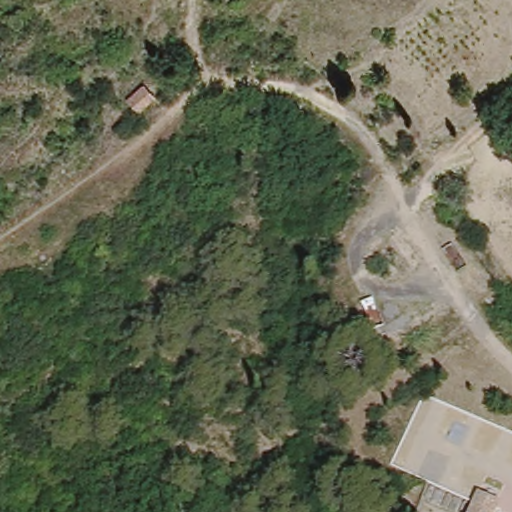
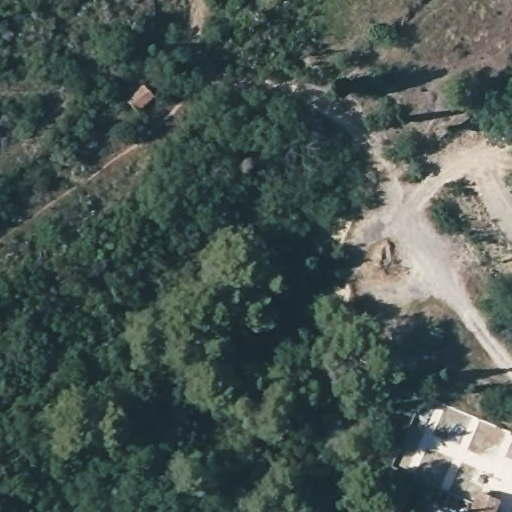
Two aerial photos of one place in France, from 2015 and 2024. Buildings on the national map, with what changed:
unchanged [(143,87),(157,104),(138,117),(125,99),(143,87)]
unchanged [(492,512),(472,512),(475,505),(480,493),(496,500),(492,512)]

